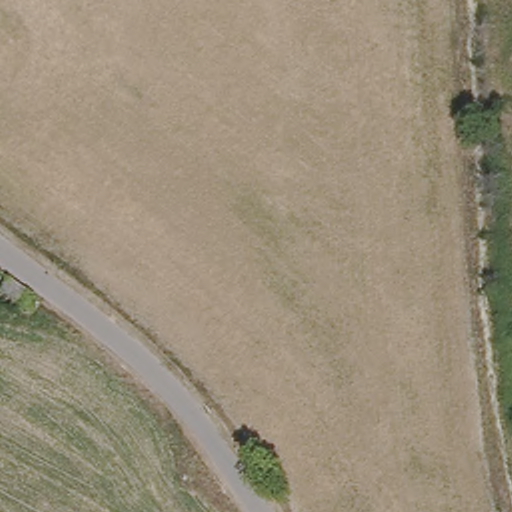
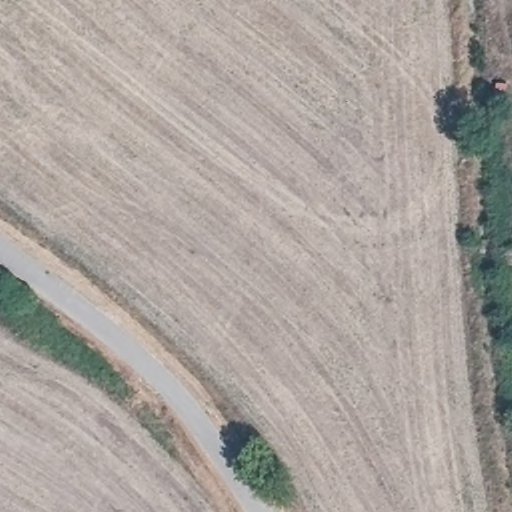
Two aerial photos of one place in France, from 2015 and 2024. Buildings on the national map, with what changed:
unchanged [(12,281),(3,293),(0,291),(0,272),(12,281)]

